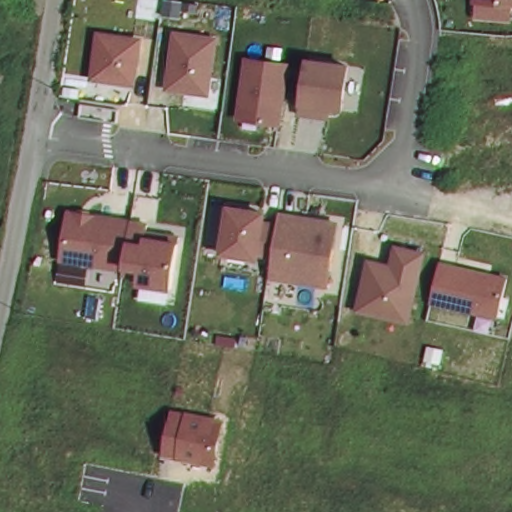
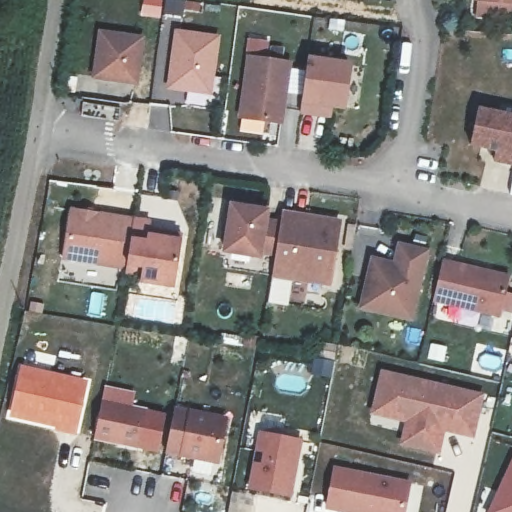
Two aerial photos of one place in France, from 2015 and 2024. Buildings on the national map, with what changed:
new [(197,0),(221,4),(220,16),(184,12),(183,16),(162,14),(164,0),(197,0)]
unchanged [(476,0),(512,0),(512,2),(475,0),(476,0)]
new [(102,30),(142,36),(136,79),(96,74),(102,30)]
unchanged [(212,94),(170,89),(177,33),(215,38),(212,94)]
unchanged [(284,124),(240,118),(248,56),(292,63),(284,124)]
unchanged [(345,112),(335,110),(332,119),(301,115),(310,58),(352,64),(345,112)]
new [(492,151),(469,146),(477,108),(512,115),(512,166),(493,163),(492,151)]
unchanged [(343,219),(332,288),(270,278),(273,259),(223,251),(230,204),(269,210),(267,219),(282,222),(285,209),(343,219)]
unchanged [(150,230),(183,234),(173,290),(139,285),(138,278),(123,275),(124,270),(62,259),(71,206),(151,219),(150,230)]
unchanged [(393,262),(397,243),(428,249),(412,322),(357,310),(368,257),(393,262)]
unchanged [(507,274),(497,317),(432,304),(442,259),(507,274)]
new [(19,364),(90,379),(77,435),(7,419),(19,364)]
new [(380,369),(485,392),(475,439),(444,433),(440,456),(398,446),(403,423),(370,414),(380,369)]
new [(145,401),(140,436),(119,434),(120,428),(97,425),(102,393),(145,401)]
unchanged [(226,417),(217,466),(164,455),(173,407),(226,417)]
new [(301,424),(291,481),(252,474),(262,418),(301,424)]
new [(512,452),(512,512),(497,512),(485,507),(512,452)]
new [(405,512),(338,512),(325,509),(333,468),(412,482),(405,512)]

